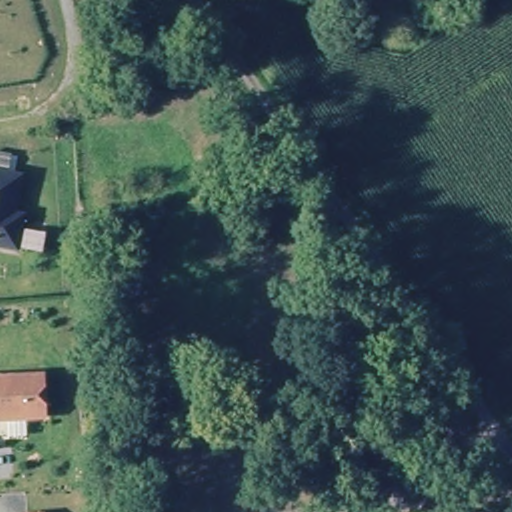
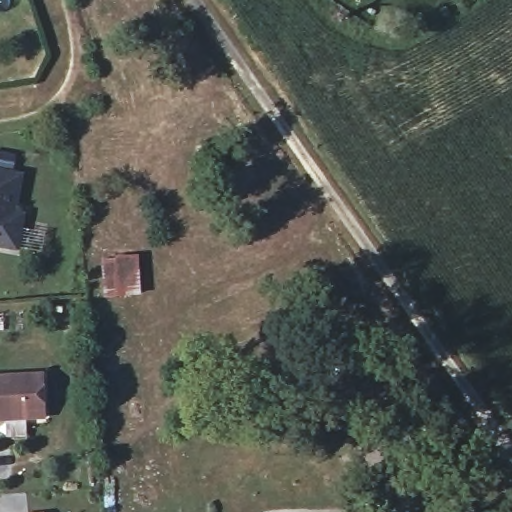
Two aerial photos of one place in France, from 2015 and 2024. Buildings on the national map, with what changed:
unchanged [(23,211),(32,212),(25,247),(0,243),(0,167),(30,172),(23,211)]
new [(138,256),(141,296),(106,297),(102,260),(138,256)]
unchanged [(50,419),(0,421),(0,379),(47,377),(50,419)]

